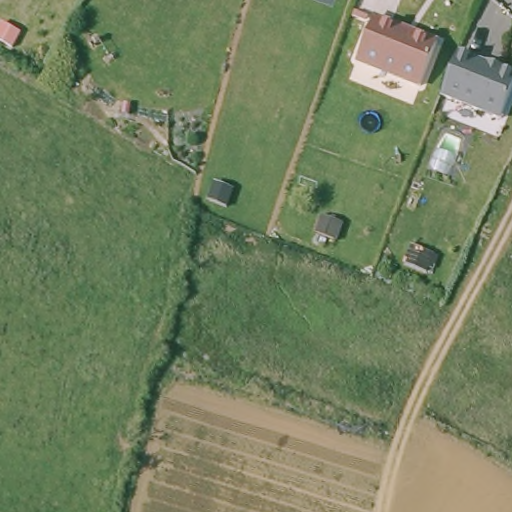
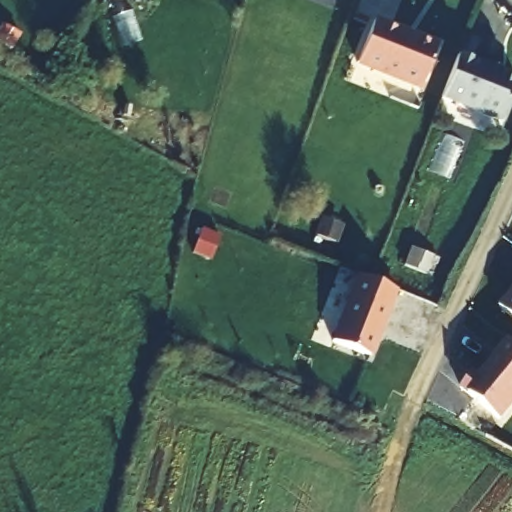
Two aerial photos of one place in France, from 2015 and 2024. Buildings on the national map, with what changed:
unchanged [(438,44),(422,86),(358,61),(375,19),(438,44)]
unchanged [(512,72),(512,86),(500,116),(441,93),(457,51),(512,72)]
unchanged [(210,184),(230,193),(225,212),(203,203),(210,184)]
unchanged [(317,218),(340,227),(335,243),(312,234),(317,218)]
new [(212,258),(195,251),(203,229),(220,236),(212,258)]
new [(439,257),(435,270),(430,269),(428,275),(403,267),(411,247),(439,257)]
new [(397,290),(372,357),(330,341),(355,274),(397,290)]
new [(512,289),(512,317),(498,306),(512,289)]
new [(512,343),(512,405),(500,421),(457,389),(471,372),(476,377),(507,340),(512,343)]

